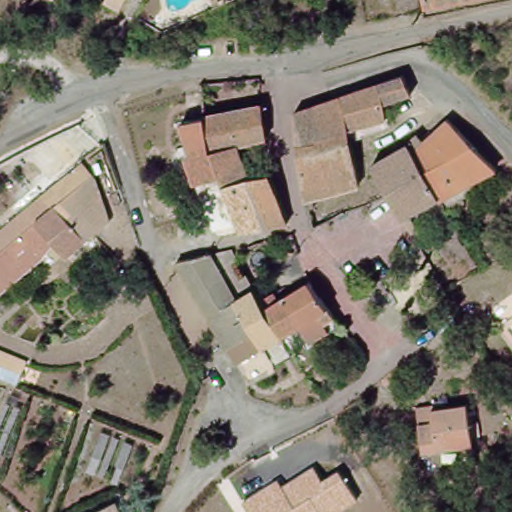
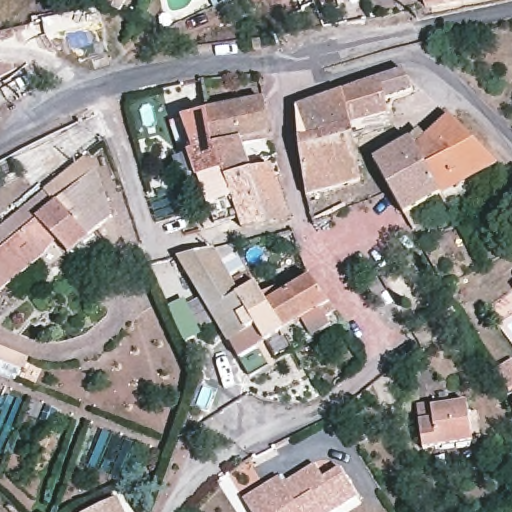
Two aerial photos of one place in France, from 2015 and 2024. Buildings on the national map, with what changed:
unchanged [(446,0),(421,5),(420,0),(446,0)]
unchanged [(259,52),(251,52),(250,43),(258,42),(259,52)]
unchanged [(91,65),(105,60),(108,70),(94,74),(91,65)]
unchanged [(405,70),(414,89),(408,91),(386,99),(390,112),(352,123),(353,127),(301,142),(297,107),(405,70)]
unchanged [(261,109),(267,142),(238,150),(215,156),(205,122),(261,109)]
unchanged [(491,168),(454,188),(461,201),(449,209),(442,196),(437,199),(406,143),(414,134),(422,142),(445,119),(491,168)]
unchanged [(248,182),(249,183),(226,191),(222,179),(195,188),(186,162),(191,160),(181,128),(205,122),(215,156),(238,150),(248,182)]
unchanged [(310,202),(308,195),(301,142),(353,127),(354,134),(362,179),(316,192),(318,200),(310,202)]
unchanged [(437,199),(400,218),(387,195),(370,164),(406,143),(437,199)]
unchanged [(88,160),(98,170),(101,172),(115,217),(71,252),(57,240),(45,254),(0,290),(0,230),(48,191),(88,160)]
unchanged [(284,222),(287,227),(265,232),(249,183),(267,178),(269,182),(284,222)]
unchanged [(222,179),(226,191),(237,227),(201,239),(197,226),(207,222),(195,188),(222,179)]
unchanged [(249,183),(265,232),(240,239),(237,227),(226,191),(249,183)]
unchanged [(298,252),(289,256),(276,250),(268,252),(264,241),(290,234),(298,252)]
unchanged [(257,300),(279,337),(260,347),(208,256),(230,251),(257,300)]
unchanged [(260,347),(279,337),(289,353),(289,357),(244,382),(176,263),(208,256),(260,347)]
unchanged [(336,326),(289,353),(279,337),(257,300),(272,293),(276,300),(286,294),(306,282),(336,326)]
unchanged [(0,377),(0,348),(23,358),(13,382),(0,377)]
unchanged [(504,382),(492,389),(485,376),(497,369),(504,382)]
unchanged [(476,446),(427,454),(420,410),(438,407),(439,411),(469,406),(476,446)]
unchanged [(506,415),(512,411),(512,426),(506,415)]
unchanged [(244,500),(279,477),(283,484),(314,465),(323,480),(340,469),(360,499),(338,512),(252,512),(244,500)]
unchanged [(119,501),(125,512),(96,512),(119,501)]

